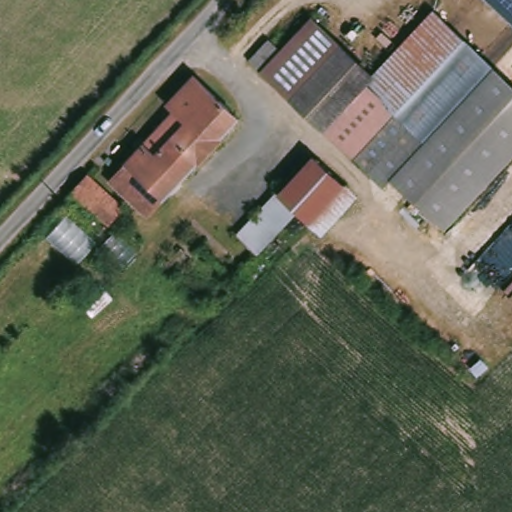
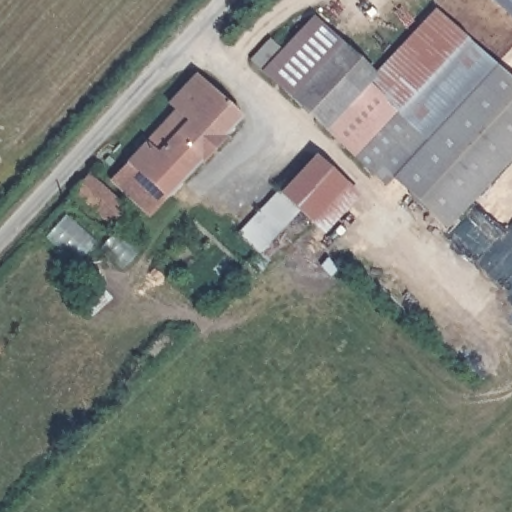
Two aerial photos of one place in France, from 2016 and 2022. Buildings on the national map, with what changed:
unchanged [(512,0),(512,23),(488,0),(512,0)]
unchanged [(305,24),(334,51),(342,43),(374,73),(434,9),(512,82),(512,159),(446,230),(380,169),(374,177),(318,125),(249,60),(269,38),(281,49),(305,24)]
unchanged [(240,113),(223,132),(224,134),(202,158),(200,156),(151,210),(114,175),(177,106),(170,100),(197,72),(240,113)]
unchanged [(321,155),(362,196),(329,232),(304,209),(303,208),(286,191),(321,155)]
unchanged [(91,171),(127,203),(112,220),(76,188),(91,171)]
unchanged [(270,244),(262,252),(242,232),(284,189),(286,191),(303,208),(304,209),(270,244)]

